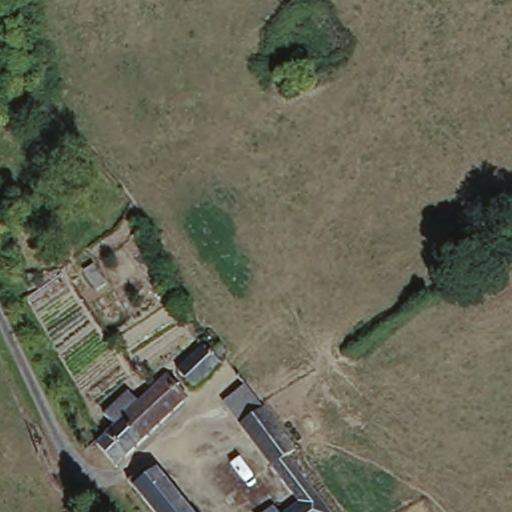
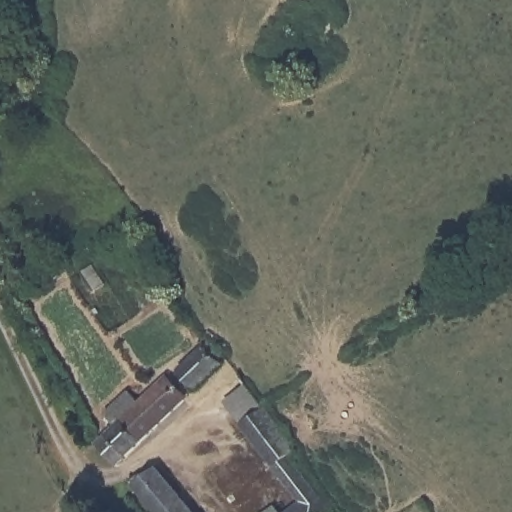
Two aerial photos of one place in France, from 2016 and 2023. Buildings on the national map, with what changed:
unchanged [(200,348),(195,342),(206,334),(225,353),(222,357),(227,363),(195,391),(176,368),(200,348)]
unchanged [(118,420),(111,410),(109,407),(135,385),(145,398),(170,377),(189,400),(116,460),(97,437),(118,420)]
unchanged [(277,503),(287,512),(298,503),(228,406),(246,386),(335,512),(265,512),(277,503)]
unchanged [(137,490),(162,471),(195,512),(155,512),(137,490)]

